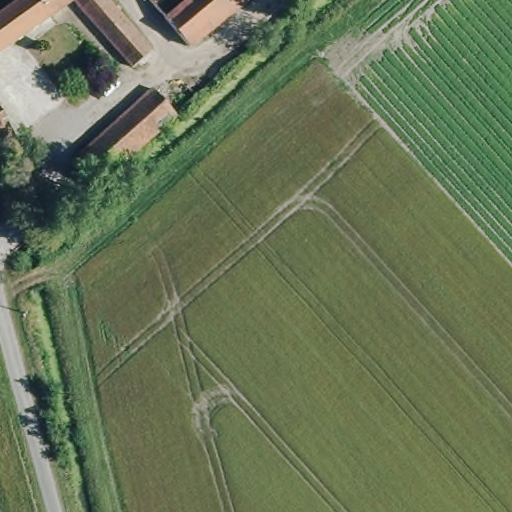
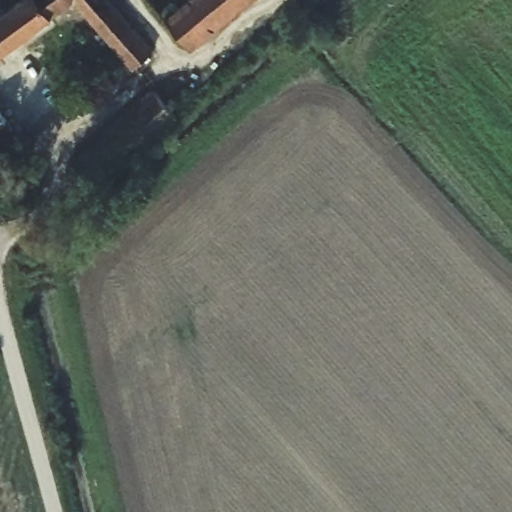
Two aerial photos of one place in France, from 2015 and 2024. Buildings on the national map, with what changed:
unchanged [(0,49),(0,14),(19,0),(64,0),(0,49)]
unchanged [(113,7),(151,52),(139,64),(133,58),(123,66),(68,0),(107,0),(113,7)]
unchanged [(187,45),(151,0),(245,0),(187,45)]
unchanged [(179,110),(100,184),(77,157),(156,85),(179,110)]
unchanged [(3,110),(7,119),(3,121),(16,152),(0,158),(0,110),(3,110)]

